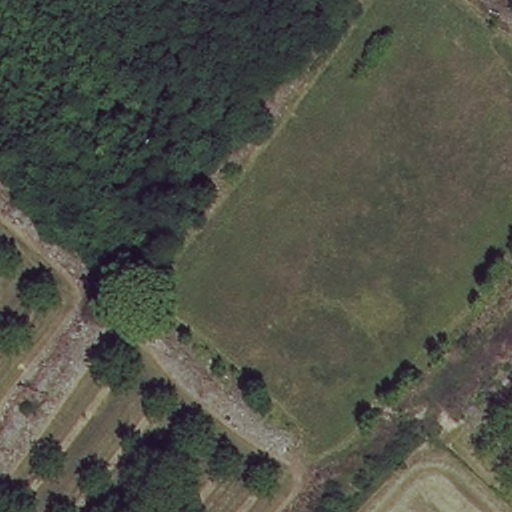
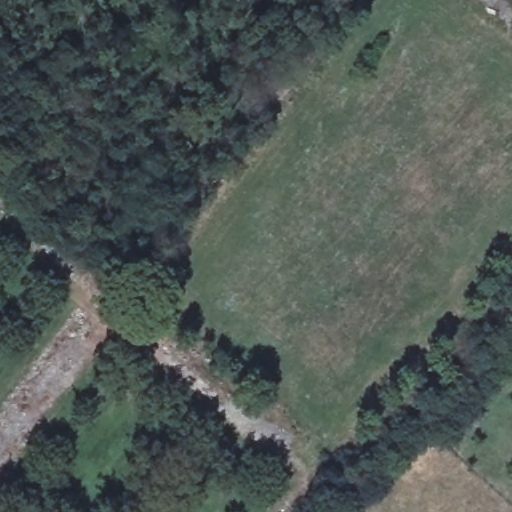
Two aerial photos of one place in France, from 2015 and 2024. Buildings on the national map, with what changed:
[]

